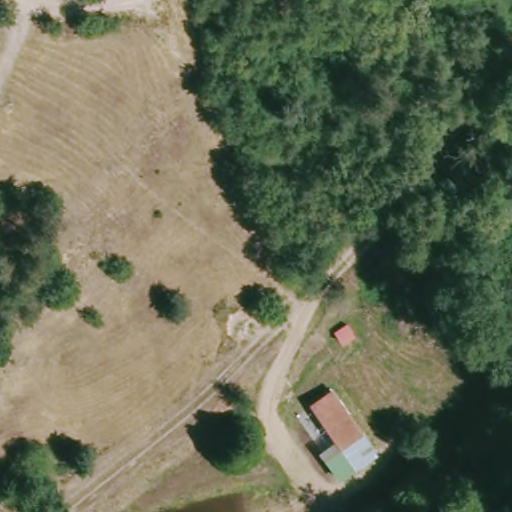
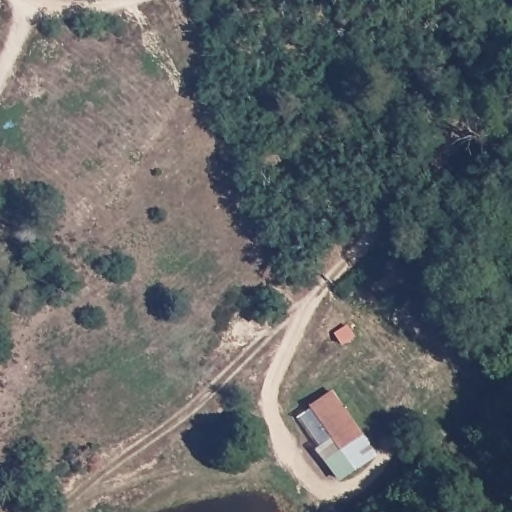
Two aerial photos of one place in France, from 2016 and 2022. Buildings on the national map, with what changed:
unchanged [(344,348),(333,355),(325,344),(336,336),(344,348)]
unchanged [(329,394),(360,434),(374,453),(339,479),(325,461),(339,450),(309,409),(329,394)]

